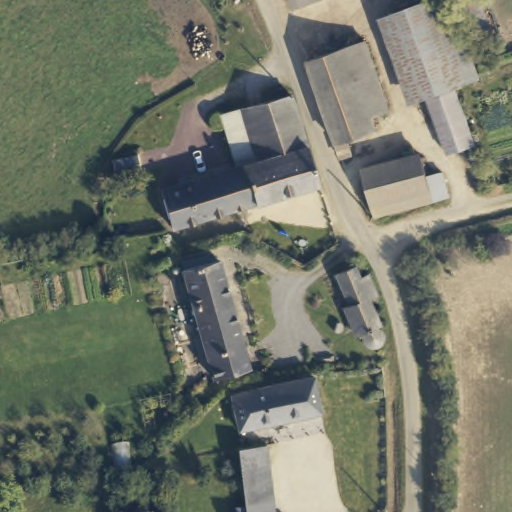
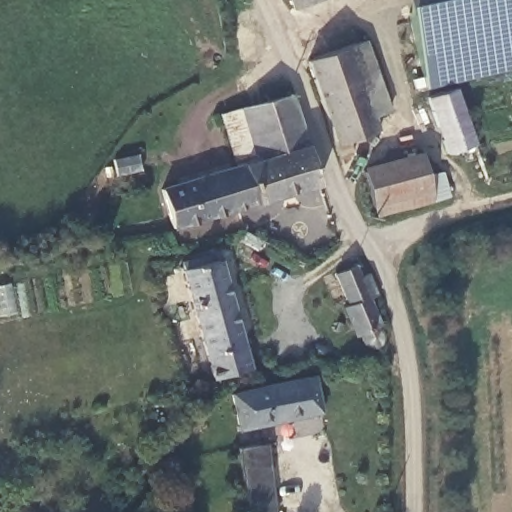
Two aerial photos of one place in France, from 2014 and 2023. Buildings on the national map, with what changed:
unchanged [(319,1),(289,13),(284,0),(318,0),(319,1)]
new [(426,90),(406,5),(402,0),(512,0),(512,71),(426,90)]
unchanged [(365,41),(389,109),(371,115),(375,127),(347,137),(352,152),(343,156),(309,60),(365,41)]
unchanged [(448,91),(468,146),(437,156),(417,102),(448,91)]
unchanged [(259,201),(249,164),(257,162),(242,106),(290,93),(319,185),(259,201)]
unchanged [(224,112),(242,106),(257,162),(249,164),(239,167),(224,112)]
unchanged [(141,170),(116,175),(114,159),(139,154),(141,170)]
unchanged [(419,160),(423,179),(439,175),(444,199),(429,204),(371,220),(360,175),(419,160)]
unchanged [(230,210),(219,174),(239,167),(249,164),(259,201),(248,206),(230,210)]
unchanged [(173,227),(162,189),(219,174),(230,210),(173,227)]
unchanged [(220,261),(250,368),(215,375),(205,336),(184,269),(220,261)]
unchanged [(350,266),(354,277),(366,272),(367,275),(373,290),(374,293),(364,296),(376,325),(373,326),(374,327),(377,329),(378,330),(379,332),(379,335),(380,336),(379,339),(379,341),(378,342),(377,344),(377,345),(374,346),(372,347),(369,347),(368,348),(367,347),(364,347),(363,346),(361,345),(359,343),(359,342),(358,340),(357,338),(358,336),(358,332),(353,335),(339,305),(346,303),(334,272),(350,266)]
unchanged [(257,387),(295,379),(294,375),(313,370),(322,412),(240,429),(233,387),(255,383),(257,387)]
unchanged [(280,512),(240,512),(233,451),(270,446),(280,512)]

